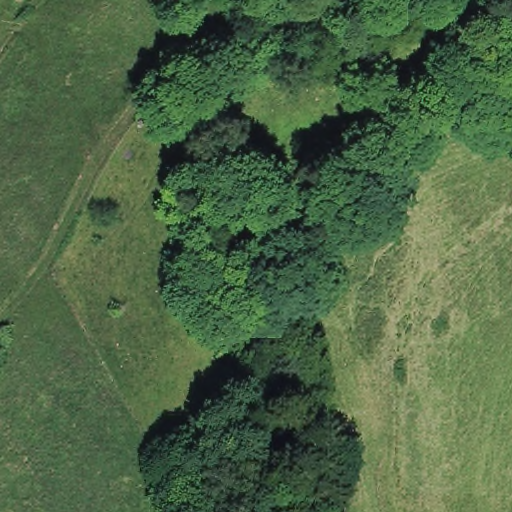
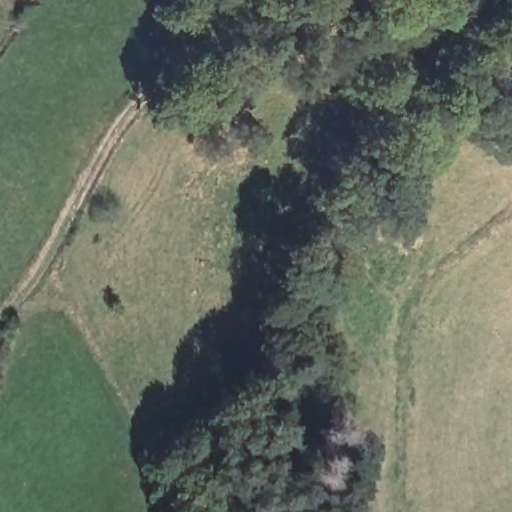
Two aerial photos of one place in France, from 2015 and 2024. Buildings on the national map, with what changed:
[]

